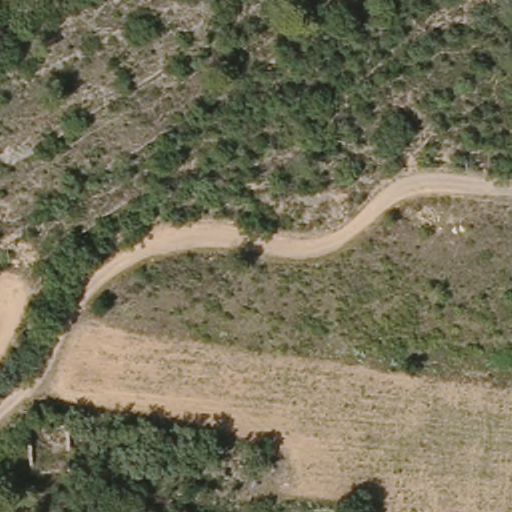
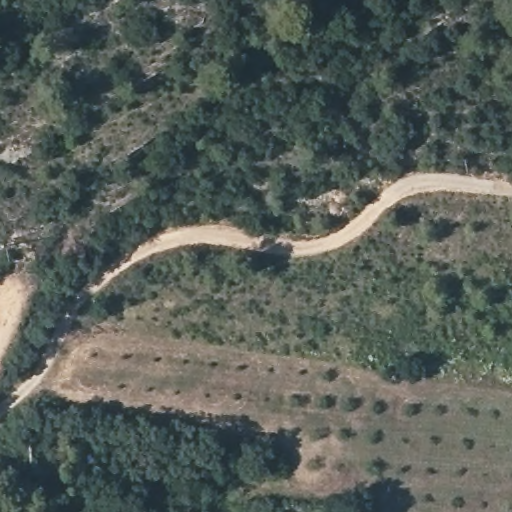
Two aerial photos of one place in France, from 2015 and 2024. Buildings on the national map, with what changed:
unchanged [(64,427),(63,450),(42,449),(42,425),(64,427)]

